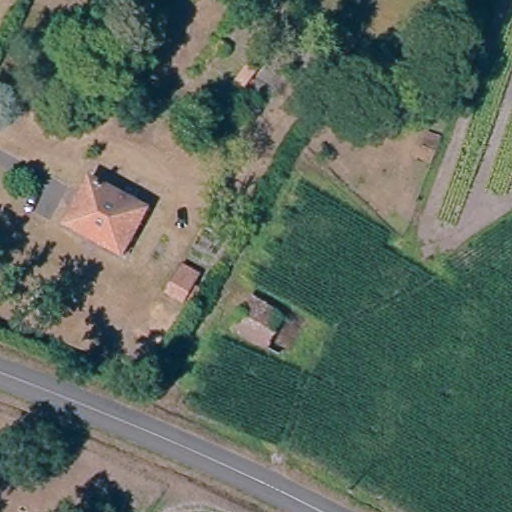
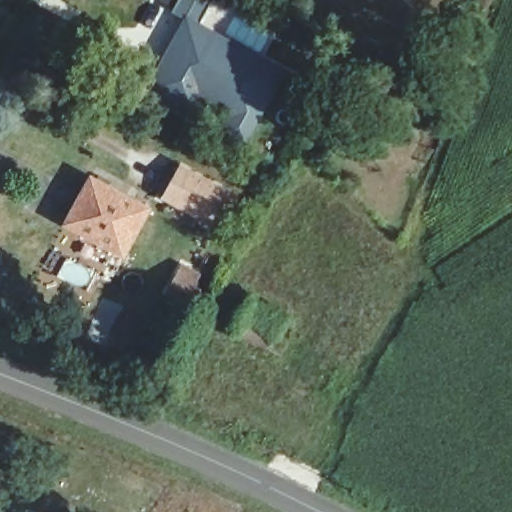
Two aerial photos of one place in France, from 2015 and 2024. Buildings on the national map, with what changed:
new [(141,85),(182,17),(170,11),(176,0),(213,0),(201,20),(286,69),(246,143),(141,85)]
new [(230,191),(211,225),(162,197),(181,163),(230,191)]
unchanged [(145,210),(121,258),(61,224),(89,176),(145,210)]
unchanged [(156,297),(172,270),(192,281),(177,309),(156,297)]
unchanged [(236,330),(252,301),(296,324),(279,354),(236,330)]

